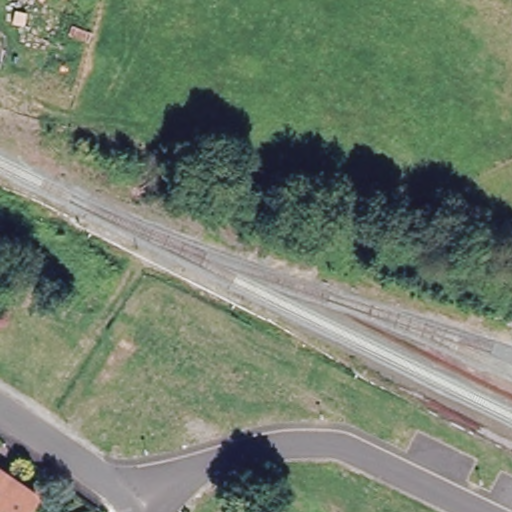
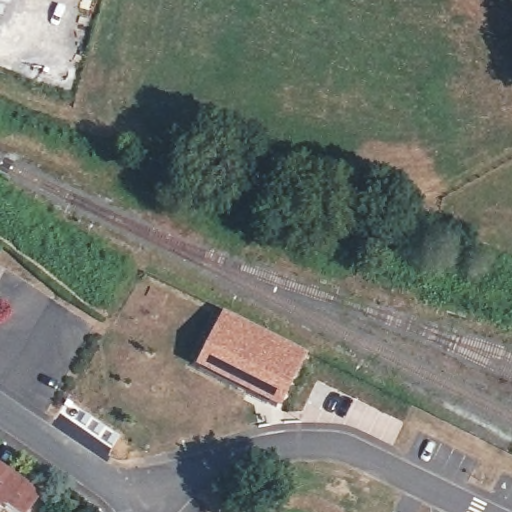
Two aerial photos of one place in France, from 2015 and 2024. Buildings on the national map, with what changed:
new [(91,2),(83,0),(92,0),(91,2)]
new [(195,368),(222,313),(306,354),(280,410),(195,368)]
unchanged [(16,512),(0,501),(0,468),(36,492),(23,512),(16,512)]

